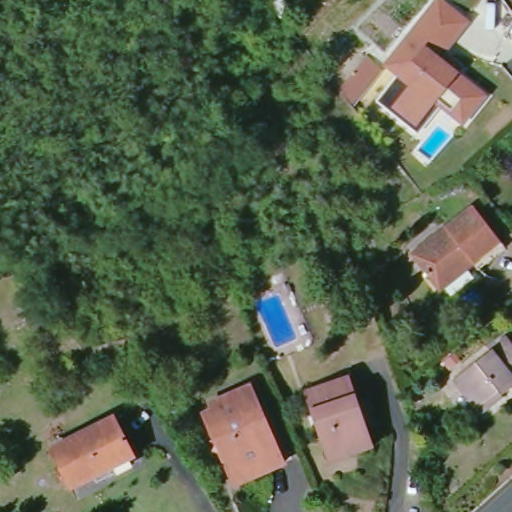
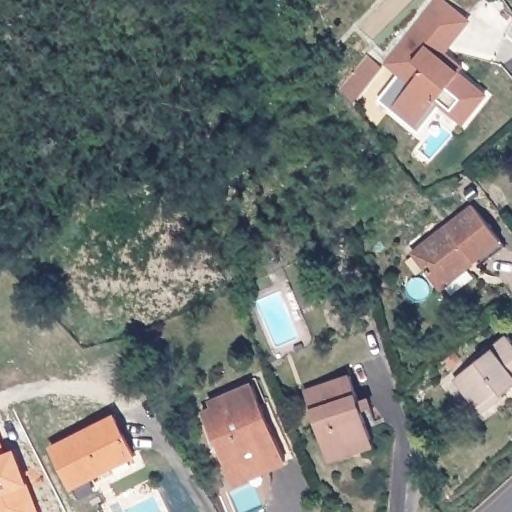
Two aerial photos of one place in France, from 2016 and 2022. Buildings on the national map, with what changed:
unchanged [(398,75),(386,65),(437,0),(442,0),(465,19),(468,21),(443,53),(450,58),(463,69),(459,74),(486,96),(463,124),(441,106),(418,134),(377,101),(398,75)]
unchanged [(352,106),(339,89),(367,55),(382,69),(352,106)]
unchanged [(410,259),(469,211),(496,248),(470,270),(465,265),(433,288),(410,259)]
unchanged [(457,380),(507,337),(512,342),(512,388),(503,395),(500,392),(480,409),(457,380)]
unchanged [(330,462),(327,452),(307,393),(352,378),(374,440),(376,447),(330,462)]
unchanged [(228,471),(221,455),(216,453),(217,447),(204,416),(214,412),(211,404),(253,386),(288,462),(270,471),(235,485),(228,471)]
unchanged [(54,451),(115,419),(135,455),(72,487),(54,451)]
new [(12,448),(39,512),(0,512),(0,443),(4,452),(12,448)]

